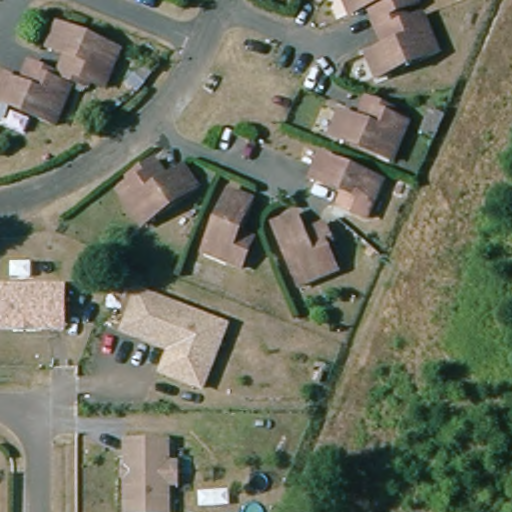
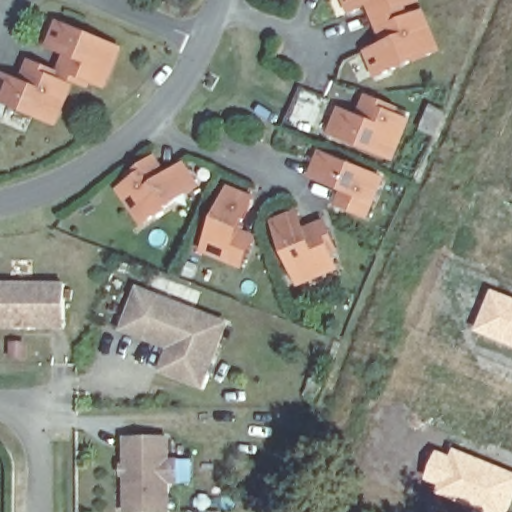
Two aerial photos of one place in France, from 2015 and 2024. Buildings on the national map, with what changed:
unchanged [(405,20),(422,14),(437,53),(377,76),(365,49),(382,42),(367,7),(351,14),(347,6),(345,0),(407,0),(398,4),(405,20)]
unchanged [(102,92),(75,81),(54,73),(62,53),(48,46),(58,24),(121,49),(102,92)]
unchanged [(0,102),(0,77),(2,73),(22,81),(29,63),(54,73),(75,81),(57,124),(0,102)]
unchanged [(362,99),(394,114),(390,124),(403,129),(388,159),(327,133),(338,109),(353,115),(362,99)]
unchanged [(385,178),(367,218),(337,204),(342,189),(310,174),(322,149),(385,178)]
unchanged [(170,178),(186,164),(202,187),(148,228),(121,194),(132,186),(126,177),(155,158),(170,178)]
unchanged [(255,196),(241,224),(256,232),(241,264),(201,248),(229,184),(255,196)]
unchanged [(332,250),(323,254),(328,268),(292,282),(265,219),(277,213),(282,210),(292,230),(319,219),(331,248),(332,250)]
unchanged [(0,323),(0,279),(63,279),(63,323),(0,323)]
unchanged [(127,325),(142,284),(231,319),(206,382),(166,366),(175,343),(143,331),(127,325)]
new [(492,289),(512,297),(512,347),(474,331),(492,289)]
unchanged [(176,459),(176,480),(167,480),(167,511),(124,511),(123,436),(167,436),(167,459),(176,459)]
new [(437,450),(450,455),(453,448),(512,471),(512,504),(509,512),(480,512),(435,493),(437,487),(425,482),(437,450)]

